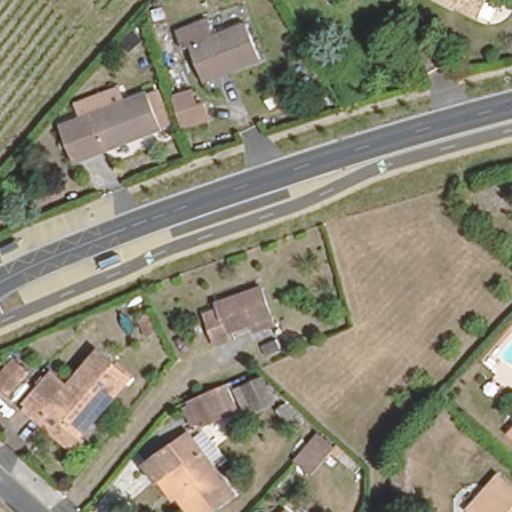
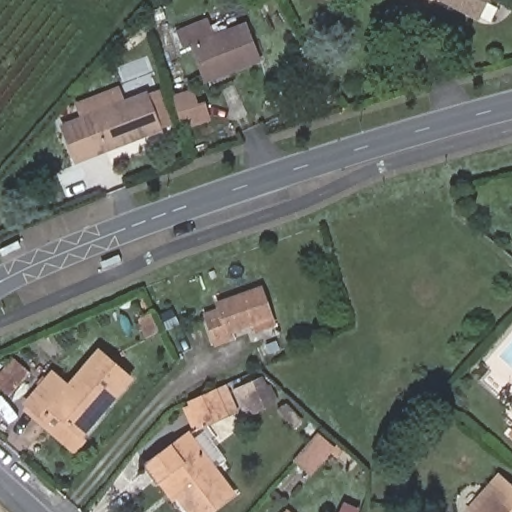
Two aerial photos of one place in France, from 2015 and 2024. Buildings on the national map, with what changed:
unchanged [(440,0),(482,0),(474,17),(440,0)]
unchanged [(134,20),(143,28),(129,44),(120,36),(134,20)]
unchanged [(248,20),(261,54),(206,76),(192,42),(248,20)]
unchanged [(194,88),(200,102),(205,101),(210,120),(181,129),(172,94),(194,88)]
unchanged [(144,92),(158,127),(100,150),(77,159),(63,125),(86,116),(144,92)]
unchanged [(272,315),(228,331),(230,338),(218,342),(207,313),(222,308),(220,302),(263,287),(272,315)]
unchanged [(26,365),(9,387),(0,381),(0,367),(11,352),(26,365)]
unchanged [(127,379),(102,407),(98,404),(73,432),(46,408),(38,417),(22,402),(48,372),(65,386),(96,352),(127,379)]
unchanged [(264,405),(248,376),(266,366),(282,396),(264,405)]
unchanged [(238,403),(212,415),(201,390),(227,378),(238,403)]
unchanged [(512,426),(512,435),(507,432),(512,426)]
unchanged [(312,431),(327,445),(303,472),(288,457),(312,431)]
unchanged [(161,481),(148,463),(190,433),(235,493),(210,512),(193,512),(179,494),(174,498),(161,481)]
unchanged [(408,462),(409,491),(393,491),(393,462),(408,462)]
unchanged [(470,508),(500,476),(512,487),(512,512),(474,512),(470,508)]
unchanged [(275,487),(285,495),(278,502),(268,494),(275,487)]
unchanged [(294,506),(301,512),(288,512),(294,506)]

